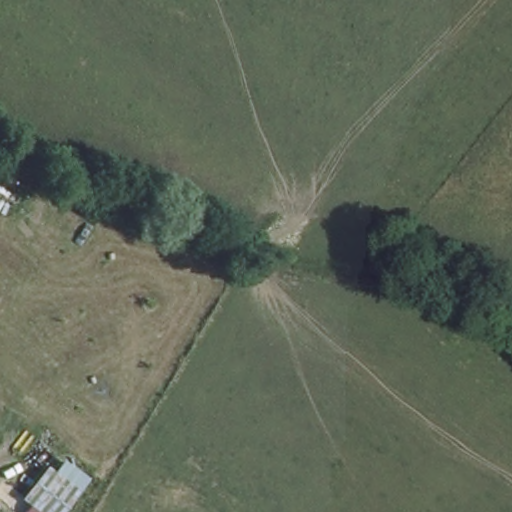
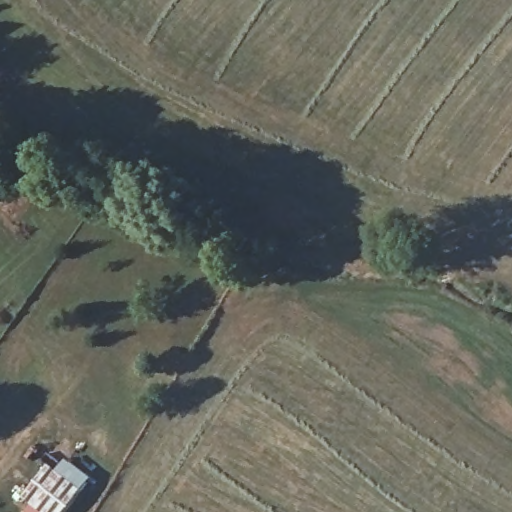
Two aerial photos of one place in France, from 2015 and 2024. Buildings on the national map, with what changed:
unchanged [(55,471),(65,460),(90,478),(63,512),(26,512),(31,505),(22,498),(49,466),(55,471)]

